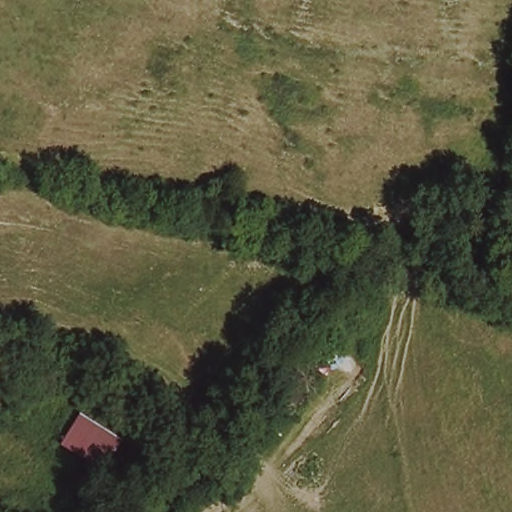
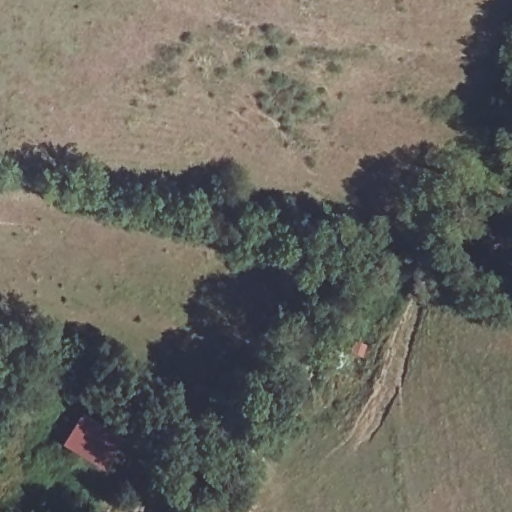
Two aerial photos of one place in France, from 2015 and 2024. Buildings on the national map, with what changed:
unchanged [(104,473),(61,446),(83,412),(127,440),(104,473)]

